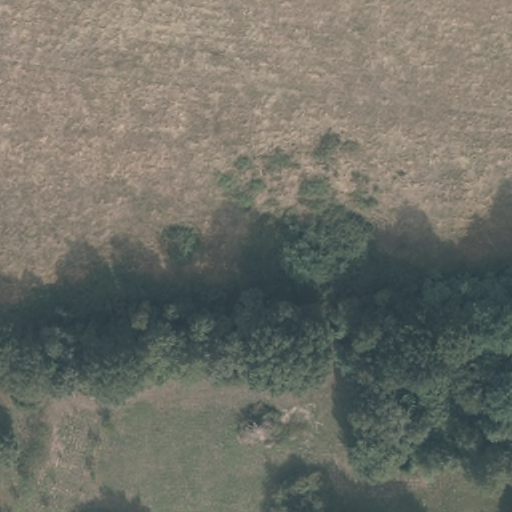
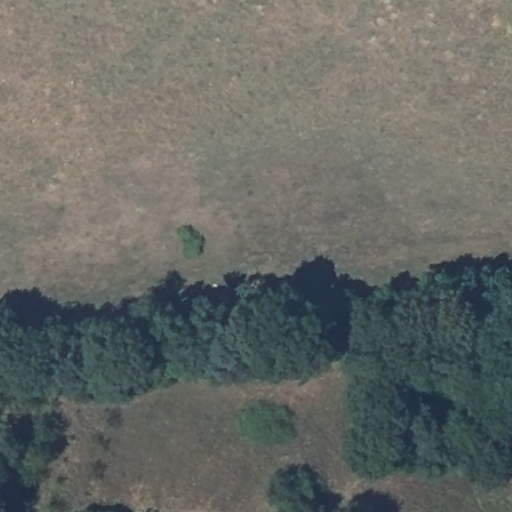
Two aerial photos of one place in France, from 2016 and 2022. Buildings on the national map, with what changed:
unchanged [(281,480),(311,480),(310,512),(281,512),(281,480)]

